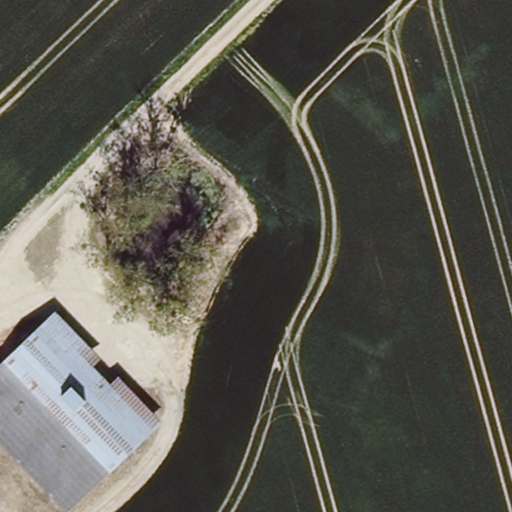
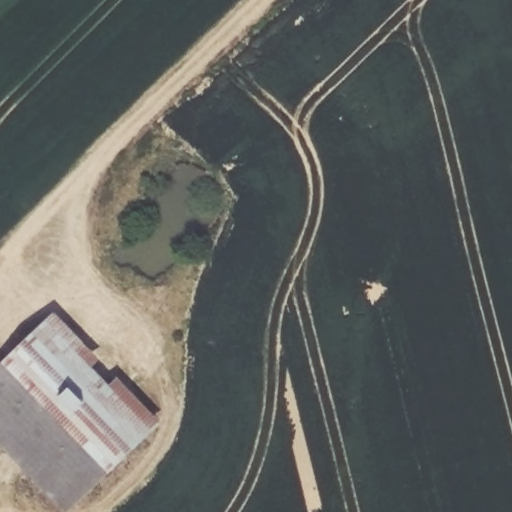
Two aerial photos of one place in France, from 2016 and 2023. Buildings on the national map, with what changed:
unchanged [(66,507),(0,440),(0,365),(40,325),(55,311),(162,418),(146,433),(66,507)]

